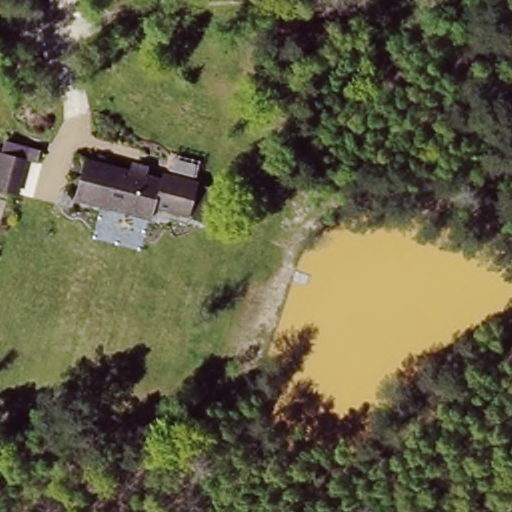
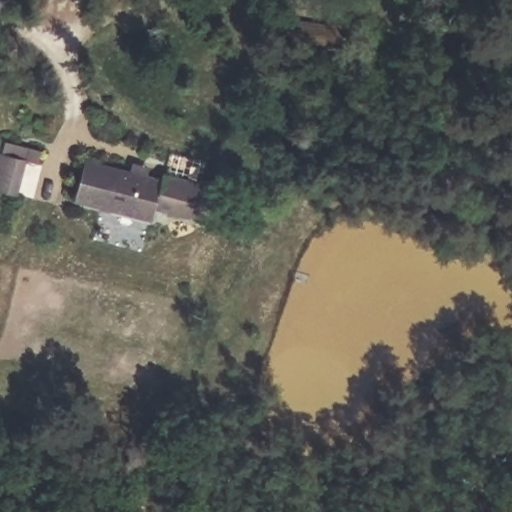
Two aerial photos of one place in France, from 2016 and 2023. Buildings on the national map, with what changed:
unchanged [(22,202),(0,197),(0,153),(33,159),(22,202)]
unchanged [(81,158),(157,177),(159,168),(194,176),(186,210),(149,201),(145,218),(71,199),(81,158)]

